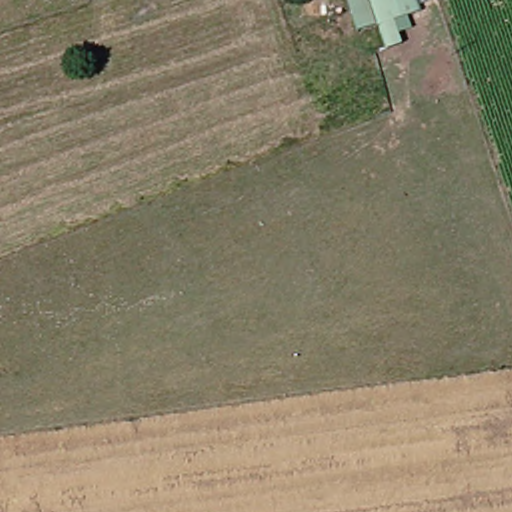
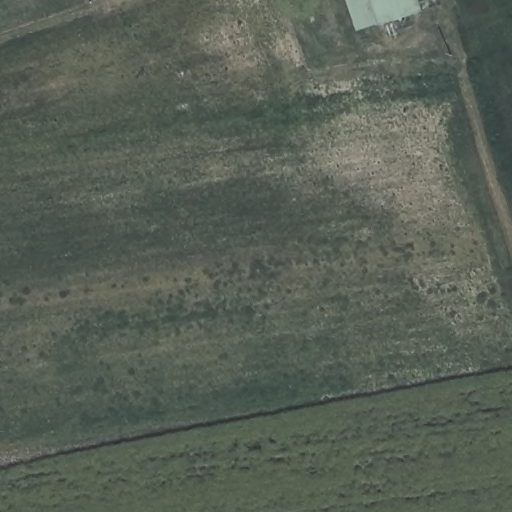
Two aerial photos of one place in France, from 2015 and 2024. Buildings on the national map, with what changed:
unchanged [(422,15),(395,26),(401,41),(385,48),(363,36),(350,0),(417,0),(422,15)]

